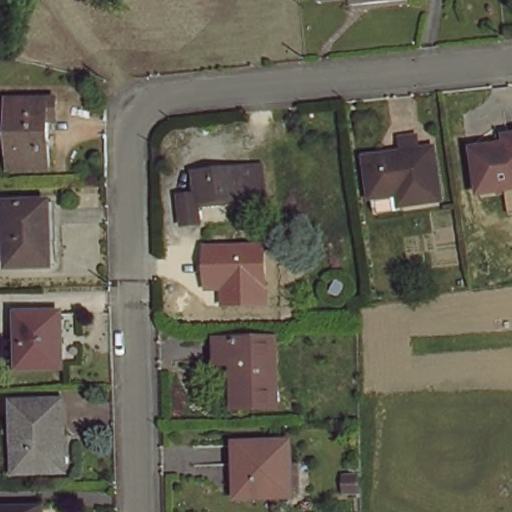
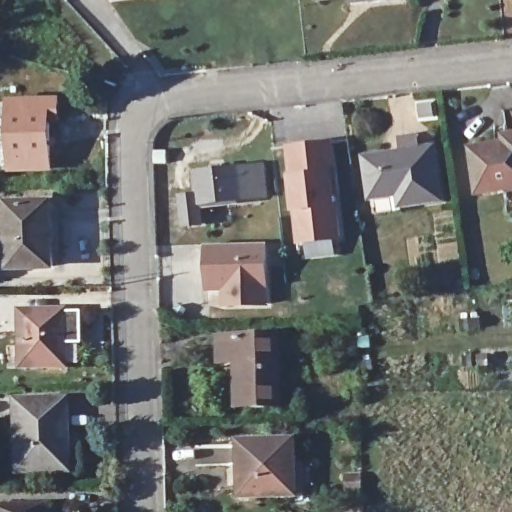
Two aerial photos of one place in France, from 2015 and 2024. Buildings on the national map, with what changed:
unchanged [(363,3),(363,0),(399,0),(388,1),(363,3)]
unchanged [(10,101),(58,100),(58,120),(49,121),(50,168),(12,170),(10,101)]
unchanged [(401,200),(402,205),(378,209),(376,203),(373,204),(371,192),(365,154),(402,148),(399,134),(415,131),(418,146),(431,144),(439,193),(401,200)]
unchanged [(473,149),(507,144),(506,136),(512,136),(512,187),(479,192),(473,149)]
new [(335,141),(341,239),(297,243),(286,146),(335,141)]
unchanged [(242,198),(236,199),(204,171),(256,165),(262,164),(266,194),(259,194),(242,196),(242,198)]
unchanged [(199,203),(201,223),(184,225),(181,196),(198,194),(196,172),(204,171),(236,199),(199,203)]
unchanged [(53,266),(13,267),(10,204),(51,203),(53,266)]
unchanged [(266,244),(268,306),(222,306),(222,290),(206,290),(203,245),(266,244)]
unchanged [(63,367),(21,368),(20,315),(63,314),(63,367)]
unchanged [(282,402),(249,403),(248,357),(224,358),(223,336),(281,334),(282,402)]
unchanged [(64,402),(66,436),(63,436),(63,472),(21,473),(20,437),(16,437),(15,403),(64,402)]
unchanged [(303,495),(288,495),(239,497),(238,443),(286,442),(287,463),(302,463),(303,495)]
unchanged [(361,491),(348,492),(348,477),(361,476),(361,491)]
unchanged [(0,509),(43,508),(43,512),(0,512),(0,509)]

